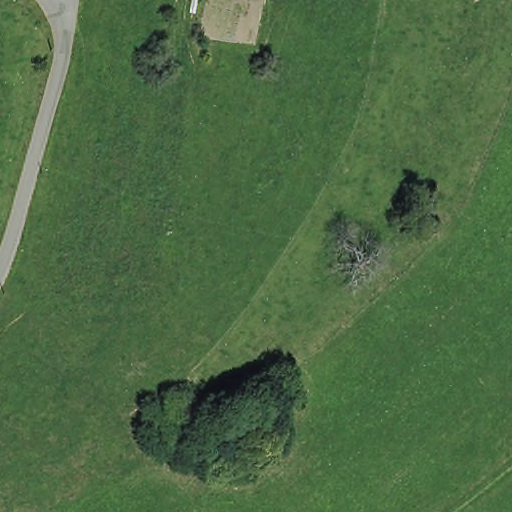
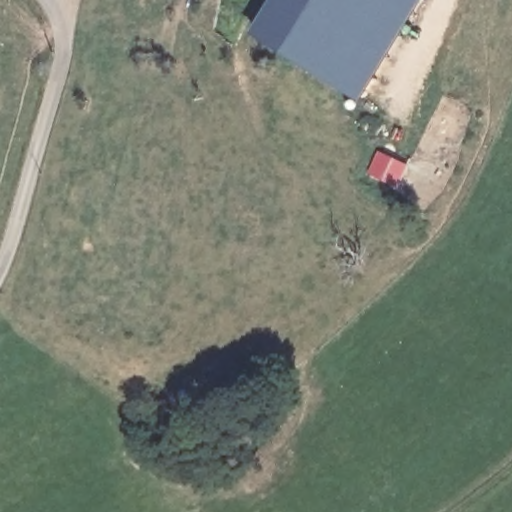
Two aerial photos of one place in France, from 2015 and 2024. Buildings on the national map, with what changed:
new [(258,37),(282,0),(440,0),(374,111),(258,37)]

